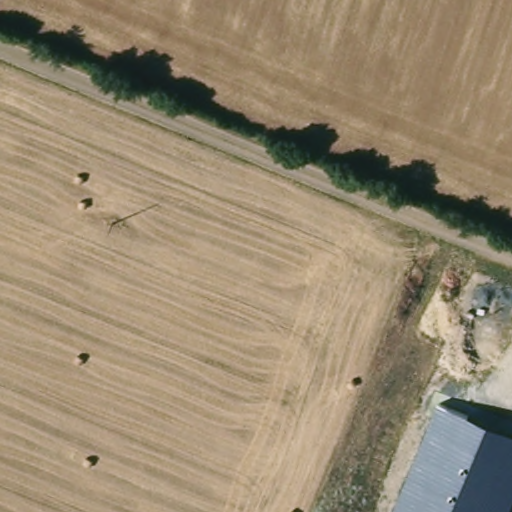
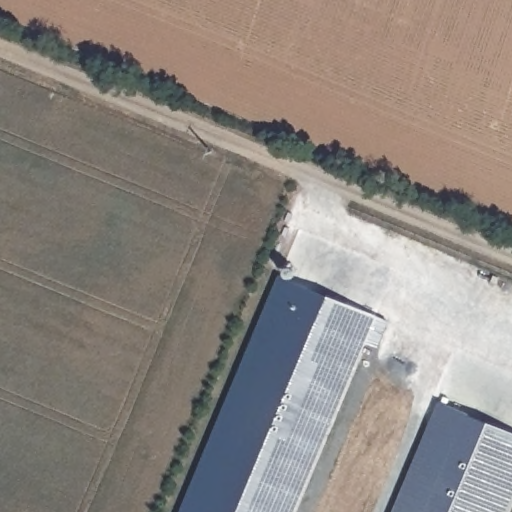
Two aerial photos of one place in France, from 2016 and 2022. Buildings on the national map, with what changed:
new [(377,317),(295,512),(180,512),(278,276),(377,317)]
unchanged [(512,433),(512,505),(509,512),(391,512),(438,402),(512,433)]

